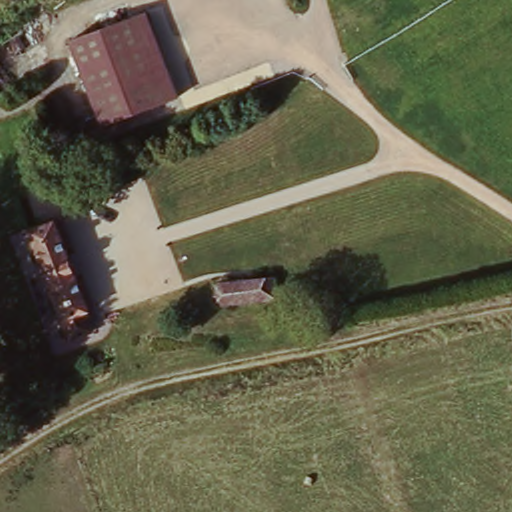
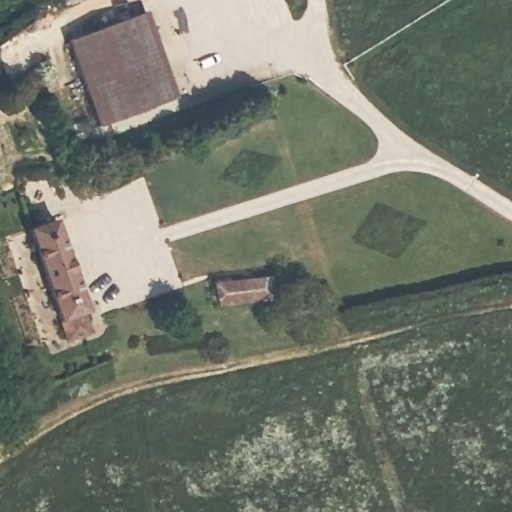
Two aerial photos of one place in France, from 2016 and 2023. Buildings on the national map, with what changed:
unchanged [(136,19),(174,101),(110,129),(73,46),(136,19)]
unchanged [(55,227),(95,320),(66,330),(27,237),(55,227)]
unchanged [(272,281),(275,303),(219,310),(216,287),(272,281)]

